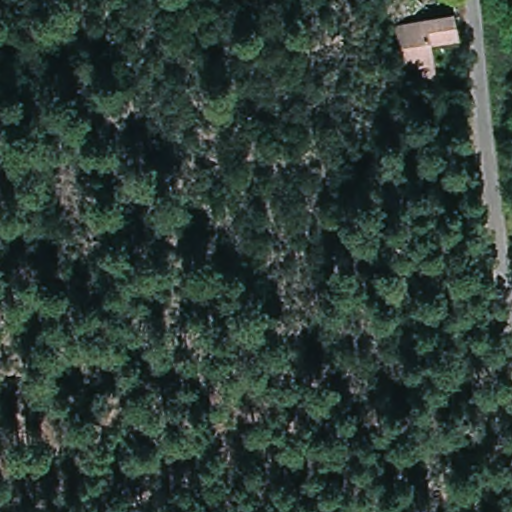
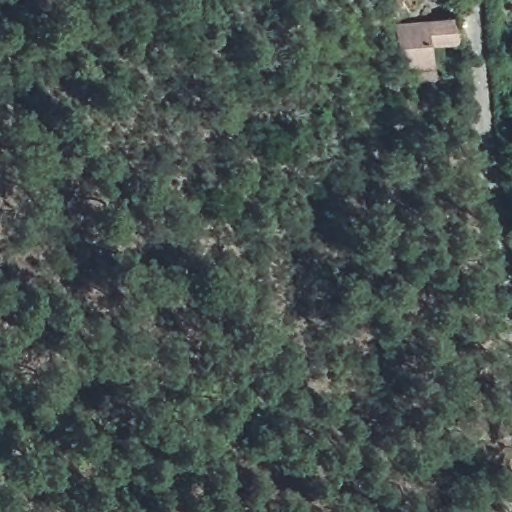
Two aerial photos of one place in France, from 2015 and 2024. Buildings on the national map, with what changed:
unchanged [(404,70),(402,50),(400,20),(454,12),(458,42),(432,46),(434,66),(404,70)]

